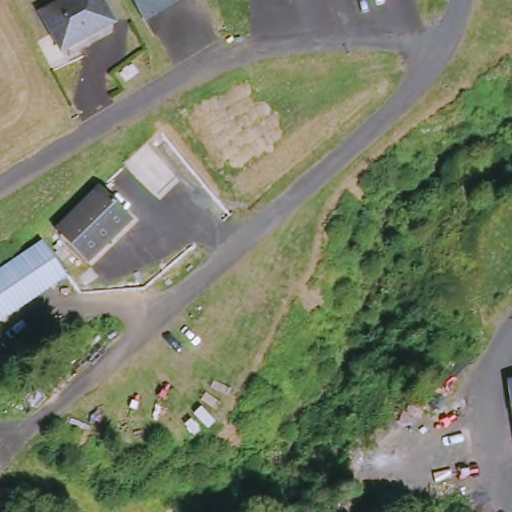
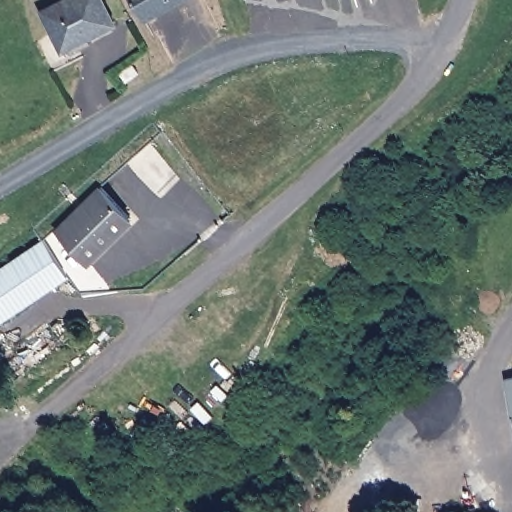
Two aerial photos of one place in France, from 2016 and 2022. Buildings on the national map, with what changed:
unchanged [(60,55),(41,17),(78,0),(99,0),(113,32),(60,55)]
unchanged [(146,23),(135,0),(191,0),(146,23)]
unchanged [(245,2),(245,0),(250,0),(245,2)]
unchanged [(136,225),(88,268),(58,232),(103,191),(136,225)]
unchanged [(0,326),(0,276),(45,248),(66,283),(0,326)]
unchanged [(512,378),(512,386),(510,378),(512,378)]

